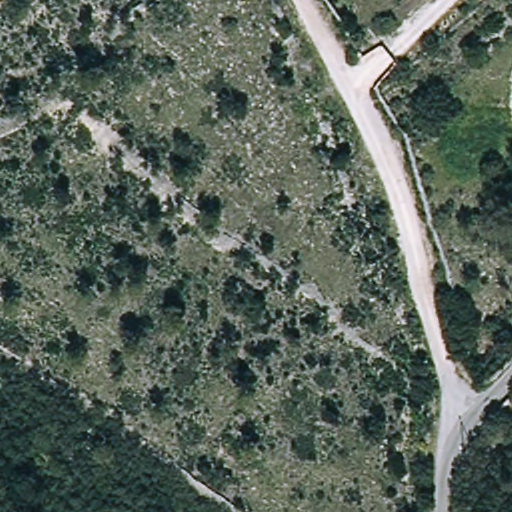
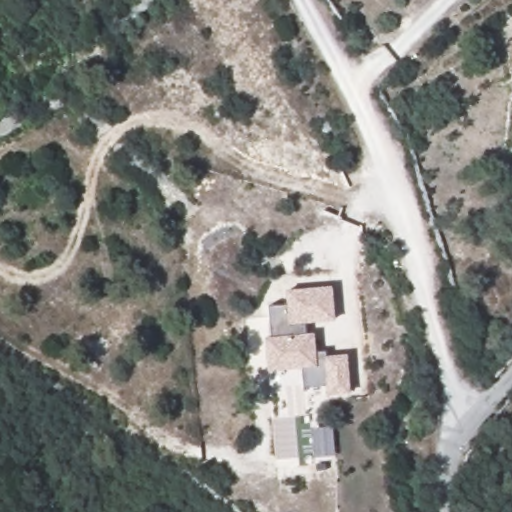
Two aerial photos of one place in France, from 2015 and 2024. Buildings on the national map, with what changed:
new [(285,306),(284,291),(331,287),(335,321),(305,325),(306,334),(313,334),(316,354),(325,352),(325,357),(346,355),(350,395),(328,397),(326,388),(304,390),(301,368),(266,373),(264,339),(271,338),(268,307),(285,306)]

